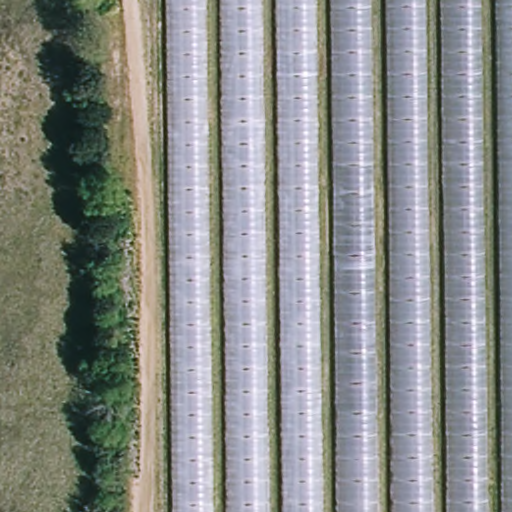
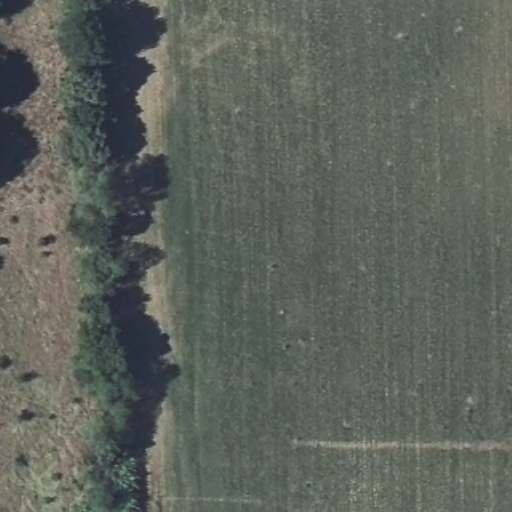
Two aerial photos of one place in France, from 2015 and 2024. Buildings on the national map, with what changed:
demolished [(162,0),(424,0),(430,512),(170,512),(162,0)]
demolished [(443,0),(512,0),(512,512),(449,512),(443,0)]

